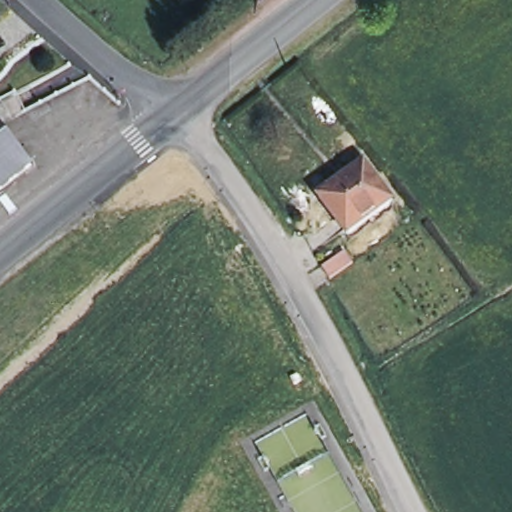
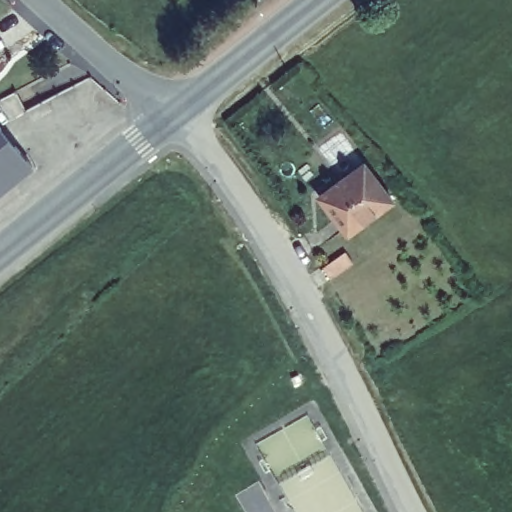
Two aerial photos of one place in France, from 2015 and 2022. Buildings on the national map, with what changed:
unchanged [(0,188),(0,118),(35,160),(0,188)]
unchanged [(364,155),(391,192),(347,224),(320,188),(364,155)]
unchanged [(352,256),(332,270),(325,257),(345,243),(352,256)]
unchanged [(369,478),(375,489),(372,490),(367,480),(369,478)]

